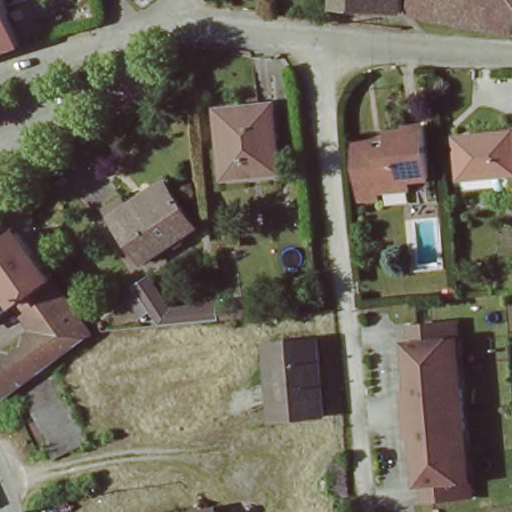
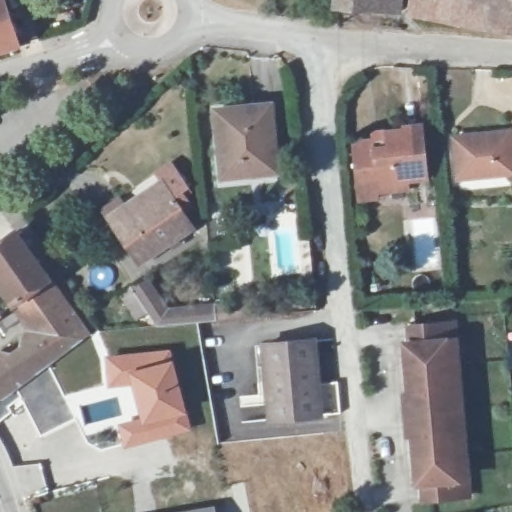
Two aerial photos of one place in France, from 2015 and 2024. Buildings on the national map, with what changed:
unchanged [(18,39),(20,44),(0,50),(0,0),(6,0),(14,25),(18,39)]
unchanged [(330,11),(330,0),(395,0),(394,13),(330,11)]
unchanged [(505,30),(488,29),(408,10),(411,0),(512,0),(512,21),(510,30),(505,30)]
unchanged [(218,174),(214,111),(270,104),(274,169),(218,174)]
unchanged [(352,181),(350,156),(377,153),(376,144),(400,142),(399,122),(423,121),(427,175),(405,176),(403,186),(377,187),(376,180),(352,181)]
unchanged [(457,177),(455,135),(512,130),(512,174),(457,177)]
unchanged [(105,211),(157,176),(186,222),(137,255),(105,211)]
unchanged [(84,335),(0,395),(0,359),(3,360),(18,348),(18,337),(30,329),(15,305),(0,282),(0,242),(13,234),(84,335)]
unchanged [(148,279),(164,308),(211,302),(212,317),(150,322),(129,289),(148,279)]
unchanged [(0,282),(15,305),(0,317),(0,282)]
unchanged [(427,495),(427,477),(413,480),(411,432),(422,431),(420,389),(407,390),(405,338),(415,337),(415,321),(455,318),(455,337),(448,337),(450,385),(460,385),(463,425),(454,426),(457,477),(470,475),(470,495),(427,495)]
unchanged [(262,415),(258,345),(310,338),(313,411),(262,415)]
new [(170,348),(192,431),(122,449),(116,422),(138,416),(130,386),(107,388),(103,356),(170,348)]
unchanged [(18,393),(53,368),(88,438),(52,457),(18,393)]
unchanged [(212,503),(213,512),(171,512),(212,503)]

